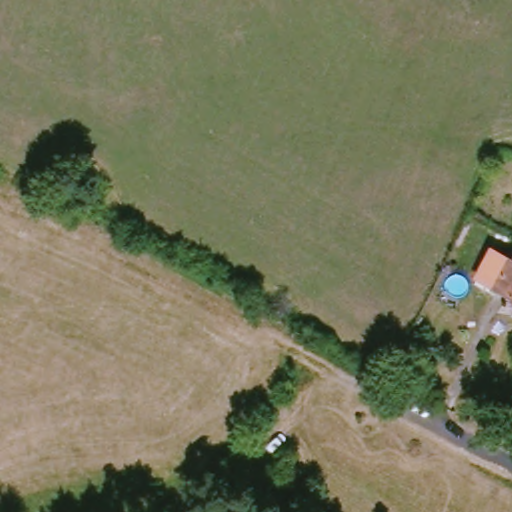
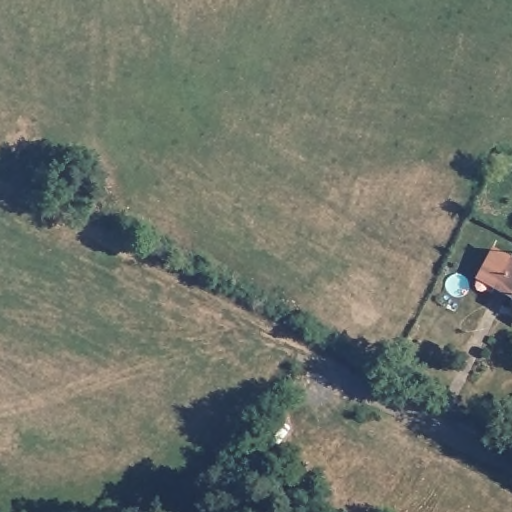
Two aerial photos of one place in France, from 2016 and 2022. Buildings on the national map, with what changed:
unchanged [(476,278),(492,251),(512,259),(512,292),(476,278)]

